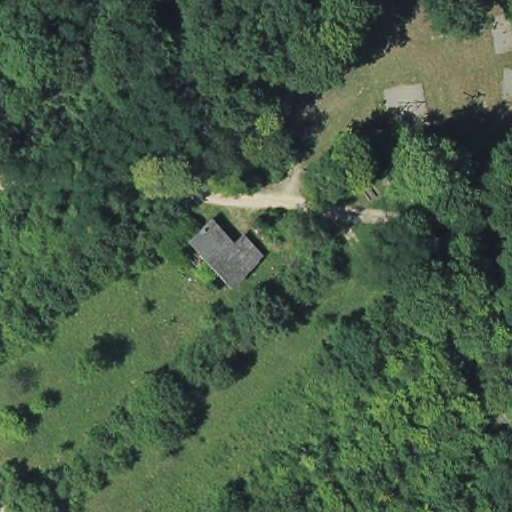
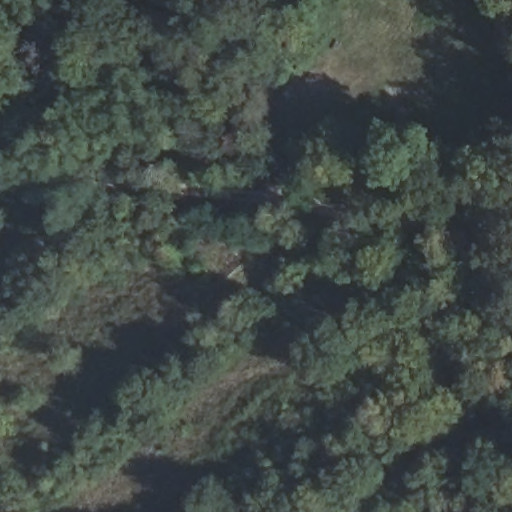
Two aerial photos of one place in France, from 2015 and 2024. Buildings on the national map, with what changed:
unchanged [(222,248),(231,239),(250,259),(221,285),(180,241),(199,223),(222,248)]

